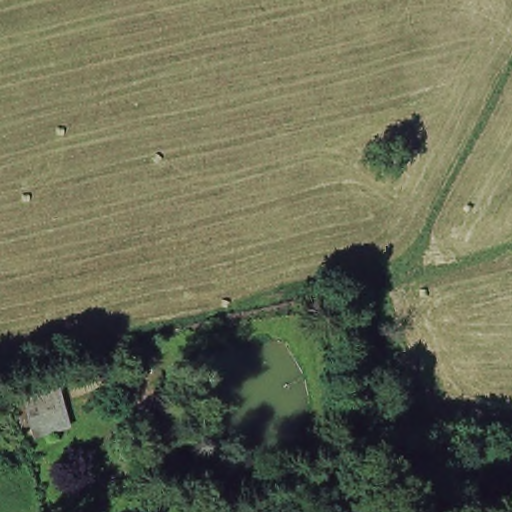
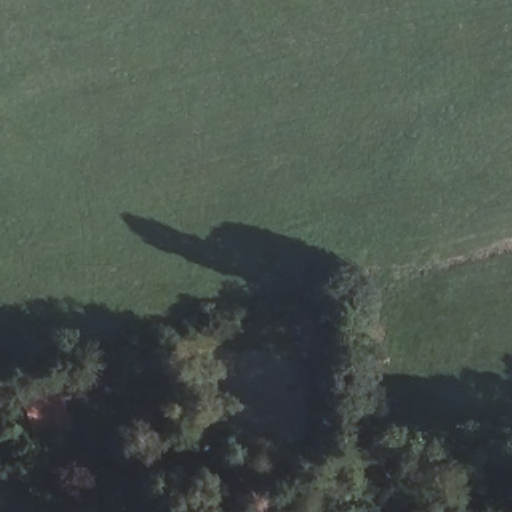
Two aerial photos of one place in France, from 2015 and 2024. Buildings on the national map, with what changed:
unchanged [(36,421),(27,423),(20,401),(29,399),(28,395),(48,390),(61,386),(71,425),(60,429),(40,435),(36,421)]
unchanged [(183,443),(196,470),(168,480),(159,453),(183,443)]

